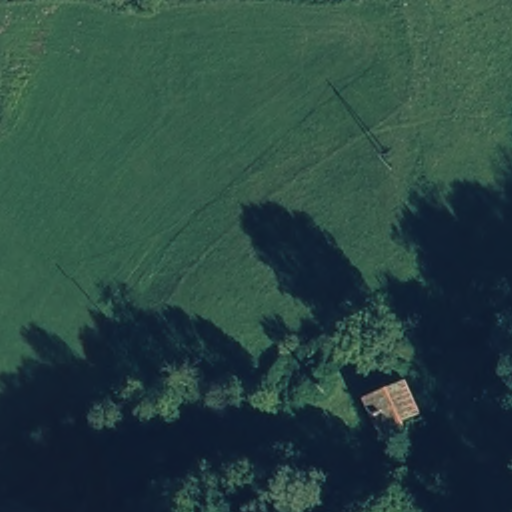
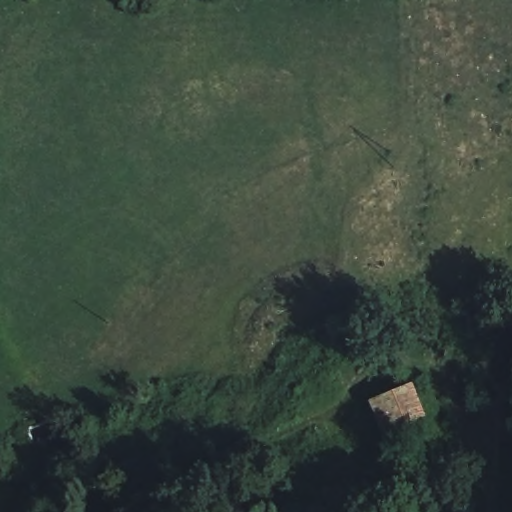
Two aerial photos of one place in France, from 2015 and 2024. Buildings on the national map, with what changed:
unchanged [(430,429),(385,446),(368,404),(414,382),(430,429)]

